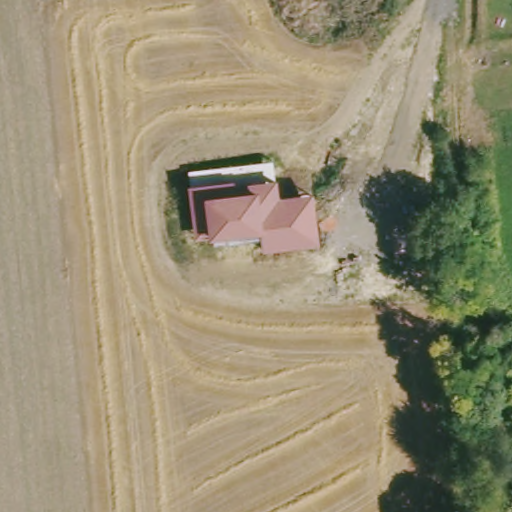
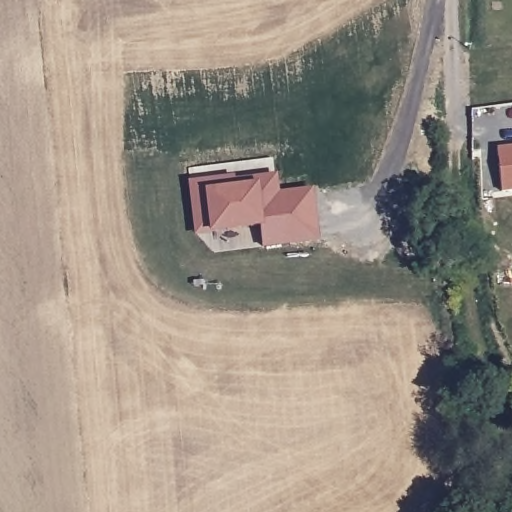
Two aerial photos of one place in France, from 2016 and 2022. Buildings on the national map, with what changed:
new [(498,147),(512,146),(512,188),(502,188),(498,147)]
unchanged [(187,182),(191,182),(188,169),(272,159),(275,176),(278,194),(311,190),(319,242),(261,250),(260,231),(210,236),(209,231),(195,237),(187,182)]

